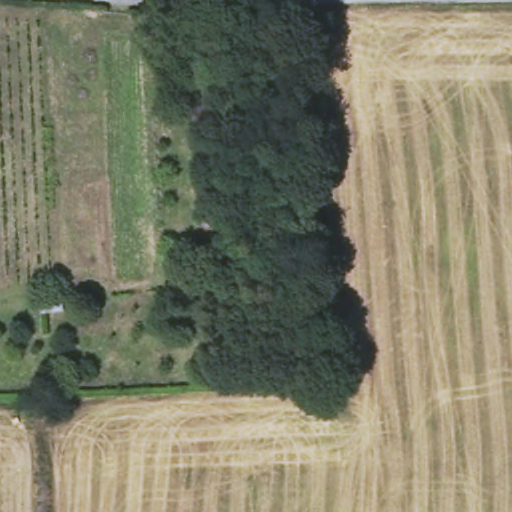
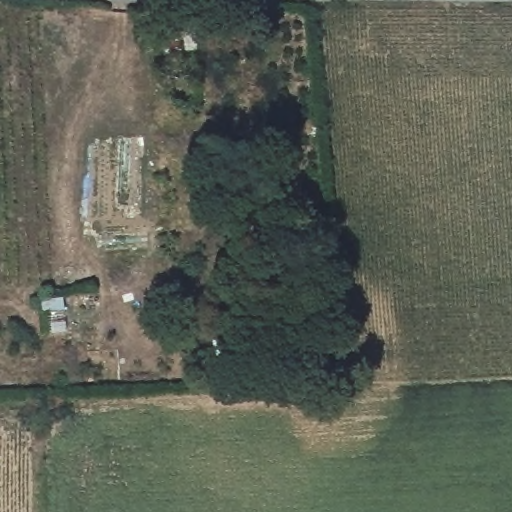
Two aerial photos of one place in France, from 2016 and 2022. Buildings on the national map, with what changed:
unchanged [(209,9),(210,48),(180,46),(180,7),(209,9)]

